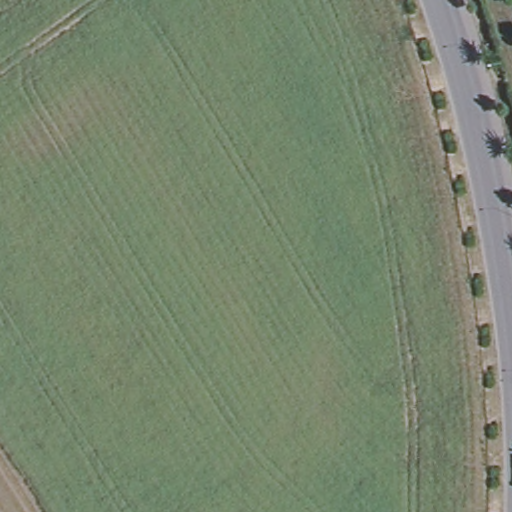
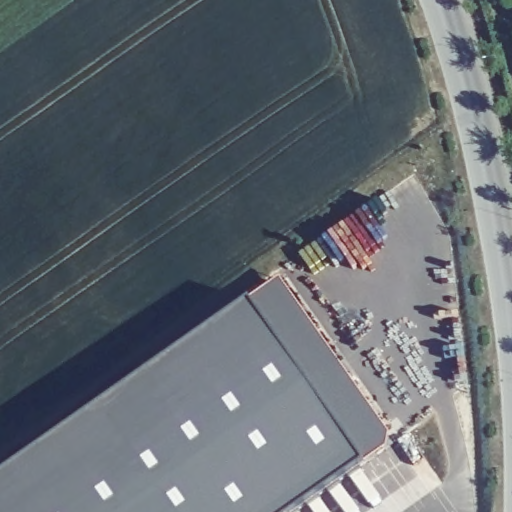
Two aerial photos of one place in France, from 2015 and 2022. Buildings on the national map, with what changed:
new [(278,277),(388,431),(386,446),(364,463),(295,512),(0,512),(0,474),(248,298),(278,277)]

